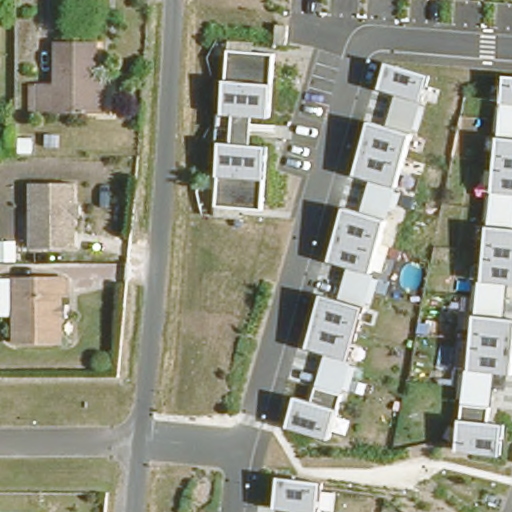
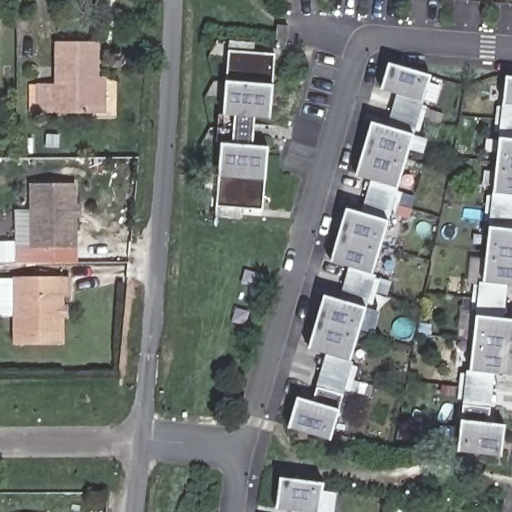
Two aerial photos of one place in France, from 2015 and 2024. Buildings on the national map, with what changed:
unchanged [(104,104),(96,104),(35,104),(34,76),(55,76),(55,34),(95,33),(95,70),(103,69),(104,104)]
unchanged [(271,118),(255,117),(253,145),(269,146),(263,210),(215,206),(220,143),(234,143),(237,116),(224,114),(230,51),(276,53),(271,118)]
unchanged [(331,440),(287,429),(297,397),(313,402),(328,353),(308,348),(324,294),(341,299),(350,267),(329,261),(345,206),(362,212),(372,181),(353,175),(371,120),(387,127),(397,95),(379,90),(388,62),(432,75),(331,440)]
unchanged [(458,452),(476,281),(484,282),(502,139),(494,137),(505,74),(512,75),(512,284),(507,283),(505,318),(512,319),(512,374),(495,372),(489,421),(506,423),(502,456),(458,452)]
unchanged [(29,242),(30,179),(74,180),(73,199),(79,199),(79,211),(73,211),(72,242),(29,242)]
unchanged [(66,315),(60,315),(60,337),(12,336),(13,273),(67,274),(68,291),(60,291),(60,301),(66,301),(66,315)]
unchanged [(293,512),(274,510),(279,478),(323,482),(320,512),(293,512)]

